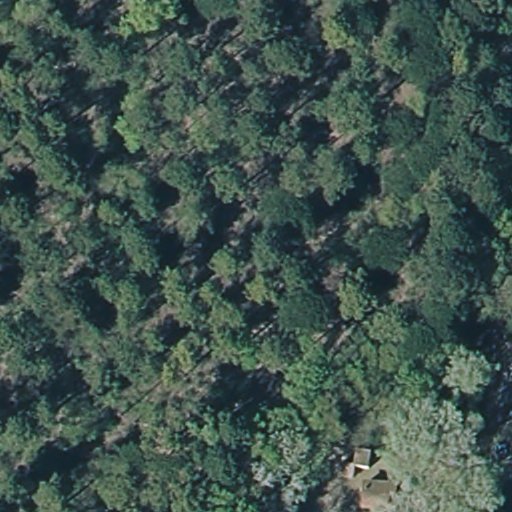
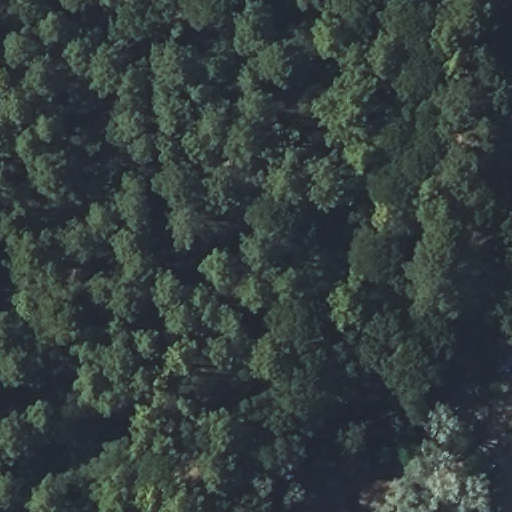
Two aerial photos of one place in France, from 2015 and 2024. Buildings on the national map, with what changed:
unchanged [(372,453),(370,469),(355,466),(353,477),(339,474),(341,462),(354,464),(357,450),(372,453)]
unchanged [(465,464),(464,479),(439,477),(440,462),(465,464)]
unchanged [(395,511),(386,510),(386,512),(373,512),(373,509),(364,508),(365,483),(397,486),(395,511)]

